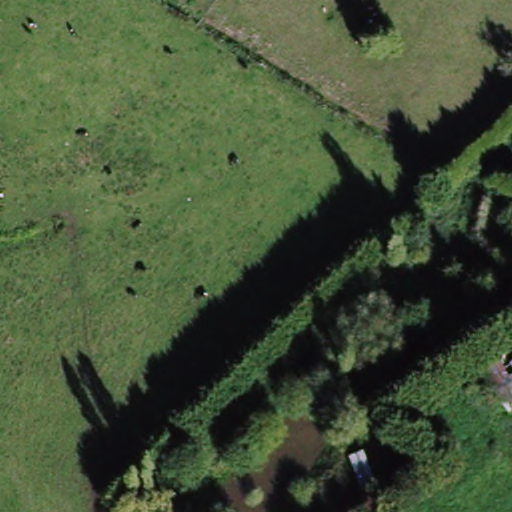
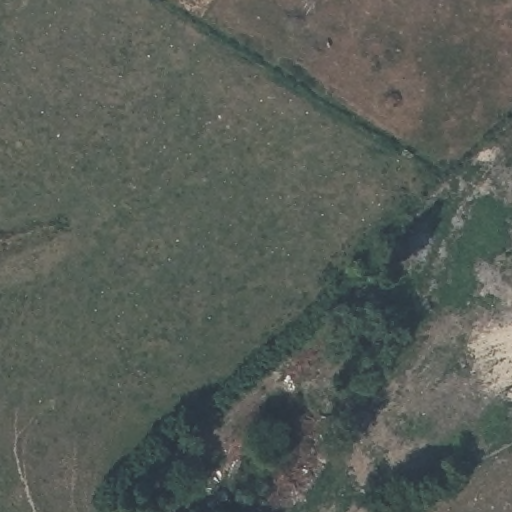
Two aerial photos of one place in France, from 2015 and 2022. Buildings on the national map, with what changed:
unchanged [(505,364),(511,372),(512,371),(512,426),(511,427),(478,384),(505,364)]

